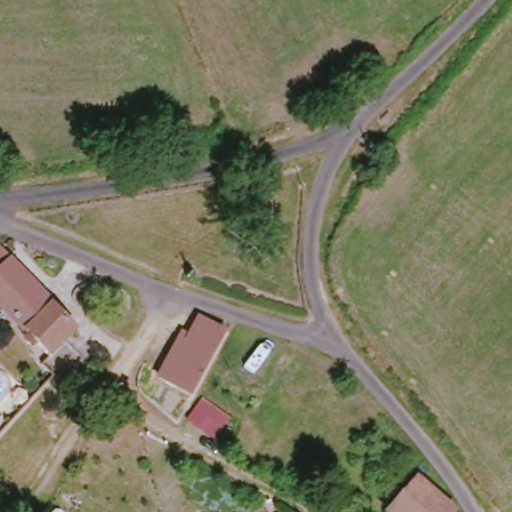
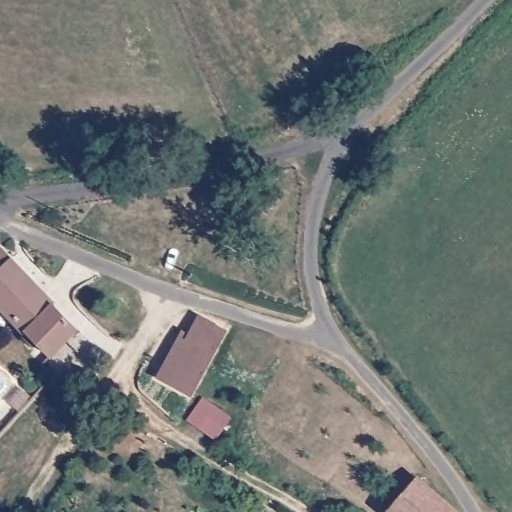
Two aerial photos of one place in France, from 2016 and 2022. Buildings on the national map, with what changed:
unchanged [(14,263),(0,275),(0,246),(11,259),(14,263)]
unchanged [(46,354),(0,303),(0,275),(14,263),(77,325),(46,354)]
unchanged [(213,352),(191,392),(156,375),(181,328),(188,330),(197,313),(226,327),(213,352)]
unchanged [(235,419),(217,444),(185,422),(202,397),(235,419)]
unchanged [(391,504),(430,477),(456,512),(398,512),(391,504)]

